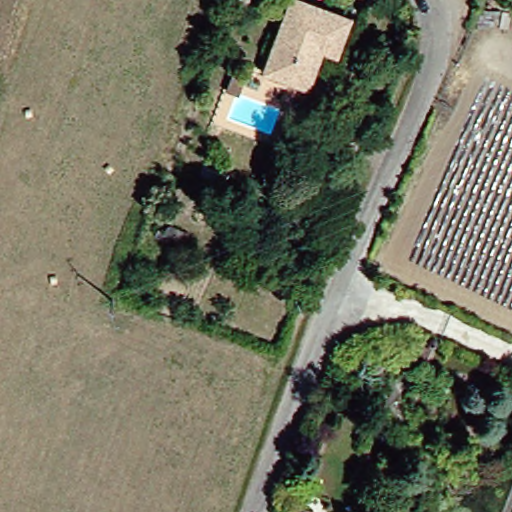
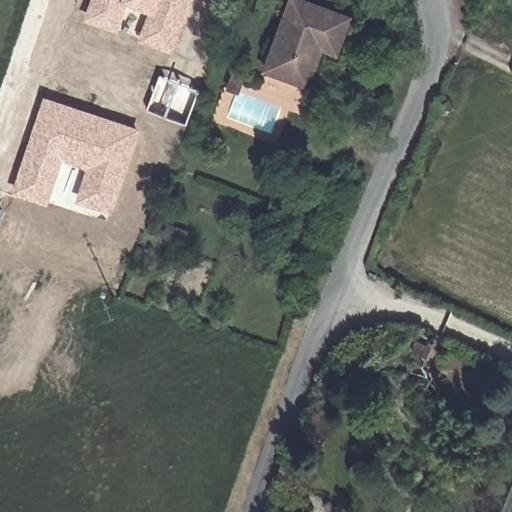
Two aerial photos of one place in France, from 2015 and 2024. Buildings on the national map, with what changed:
new [(194,0),(174,53),(140,41),(150,13),(129,5),(120,33),(85,21),(93,0),(194,0)]
unchanged [(302,0),(339,14),(326,49),(311,44),(297,81),(256,66),(280,0),(302,0)]
unchanged [(237,92),(229,89),(234,74),(243,77),(237,92)]
new [(161,75),(200,91),(188,125),(148,110),(161,75)]
new [(45,97),(141,129),(114,215),(77,202),(87,169),(65,161),(48,206),(13,194),(45,97)]
new [(7,209),(0,230),(0,206),(7,209)]

